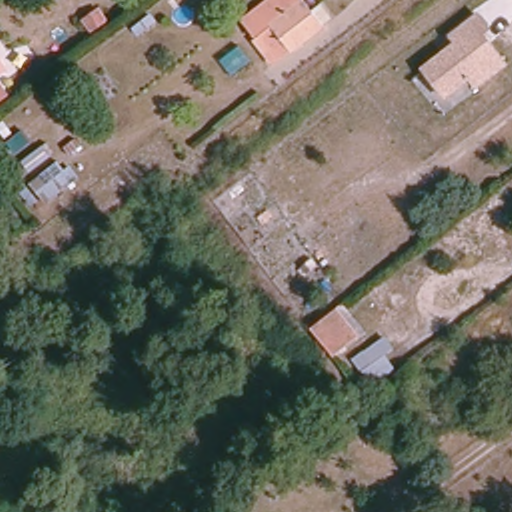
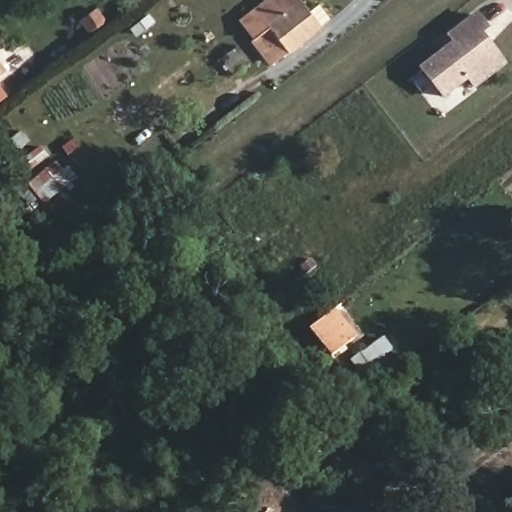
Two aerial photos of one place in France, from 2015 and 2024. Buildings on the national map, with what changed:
unchanged [(301,0),(323,27),(289,54),(288,53),(278,61),(269,49),(262,55),(239,25),(270,0),(301,0)]
unchanged [(454,44),(448,36),(475,15),(486,29),(479,34),(502,65),(473,87),(466,79),(441,97),(420,69),(454,44)]
unchanged [(0,75),(0,59),(8,69),(0,75)]
unchanged [(0,96),(0,85),(5,92),(0,96)]
unchanged [(43,199),(32,185),(59,162),(69,178),(43,199)]
unchanged [(338,308),(358,334),(333,352),(318,332),(314,327),(338,308)]
unchanged [(373,387),(354,359),(386,336),(394,347),(387,355),(396,371),(373,387)]

